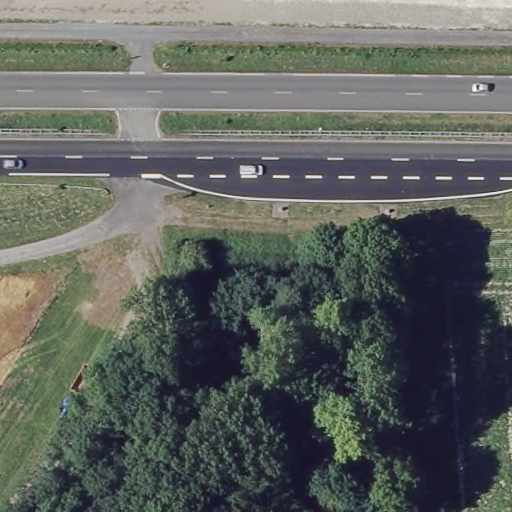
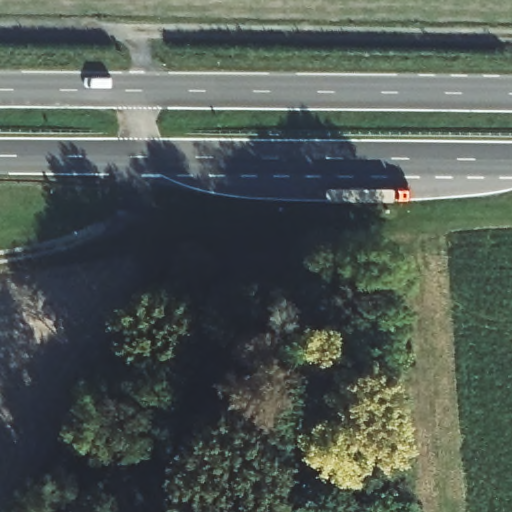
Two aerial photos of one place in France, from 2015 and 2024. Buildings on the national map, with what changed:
unchanged [(166,407),(187,454),(153,469),(133,416),(166,407)]

